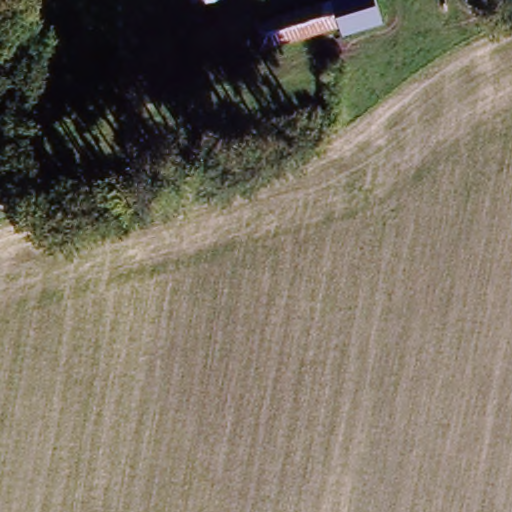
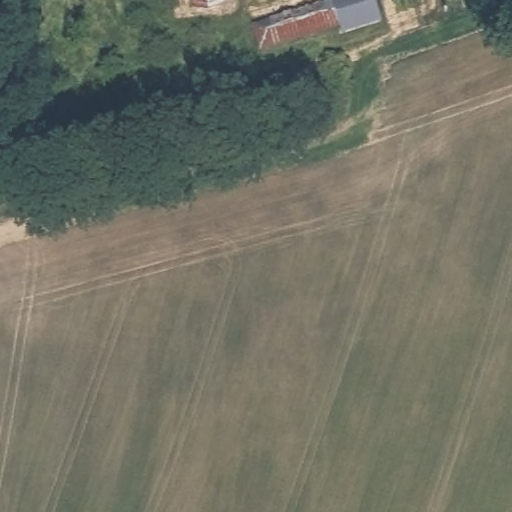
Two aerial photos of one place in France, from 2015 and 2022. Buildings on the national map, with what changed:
unchanged [(189,0),(194,0),(189,1),(189,0)]
unchanged [(330,0),(371,0),(382,27),(339,37),(336,31),(261,53),(249,22),(330,0)]

